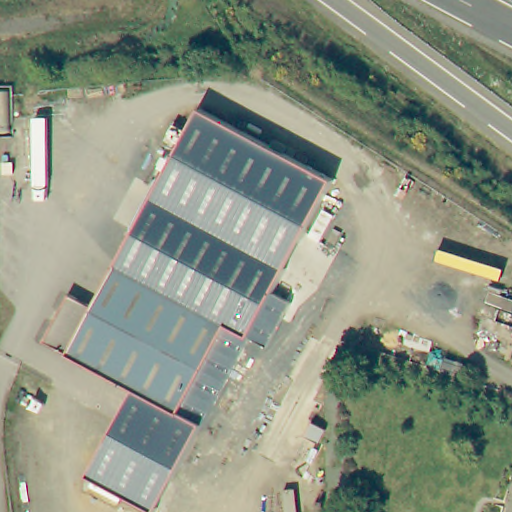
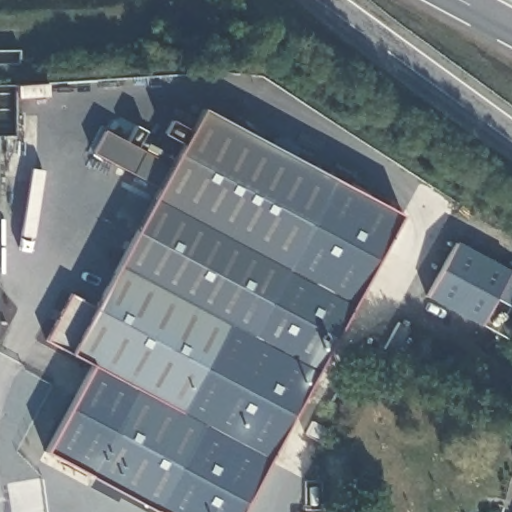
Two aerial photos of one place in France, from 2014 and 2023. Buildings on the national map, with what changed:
unchanged [(182,412),(232,321),(121,262),(201,111),(332,179),(273,292),(292,303),(268,347),(250,337),(202,424),(155,511),(89,476),(139,388),(182,412)]
new [(202,424),(250,337),(268,347),(292,303),(273,292),(332,179),(401,217),(243,512),(157,512),(155,511),(202,424)]
unchanged [(232,321),(182,412),(50,339),(75,292),(97,304),(121,262),(232,321)]
new [(139,388),(89,476),(45,451),(95,364),(139,388)]

